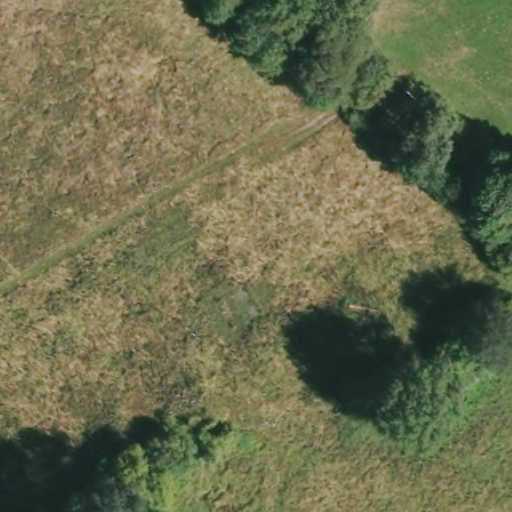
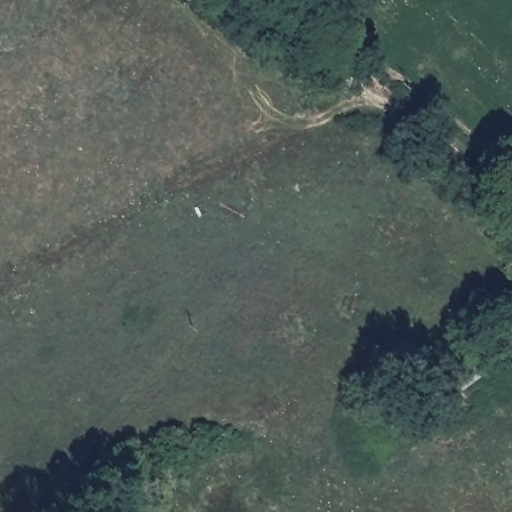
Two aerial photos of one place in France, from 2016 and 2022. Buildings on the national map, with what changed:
unchanged [(439,402),(427,380),(464,354),(478,377),(439,402)]

